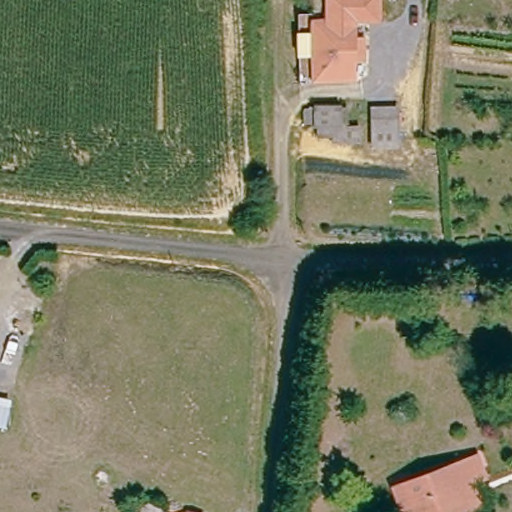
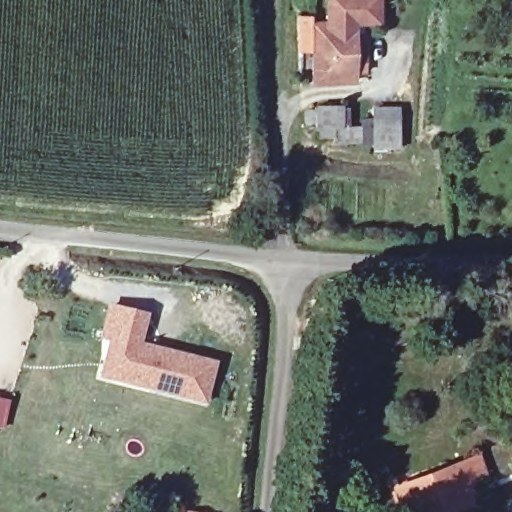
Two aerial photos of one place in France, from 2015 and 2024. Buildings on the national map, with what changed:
unchanged [(325,0),(380,0),(381,24),(355,26),(356,18),(326,20),(325,0)]
unchanged [(326,20),(356,18),(355,26),(355,36),(369,37),(370,63),(357,64),(357,82),(312,85),(308,21),(326,20)]
unchanged [(315,110),(341,110),(341,128),(361,129),(361,143),(315,142),(315,110)]
unchanged [(368,158),(368,143),(368,124),(395,123),(395,143),(395,159),(368,158)]
new [(98,377),(106,340),(98,337),(106,307),(111,303),(149,313),(141,341),(217,360),(206,404),(98,377)]
unchanged [(482,508),(472,512),(401,512),(393,487),(478,455),(490,483),(480,487),(482,508)]

